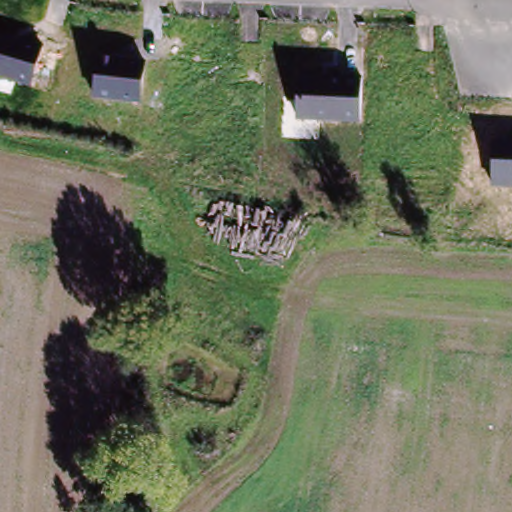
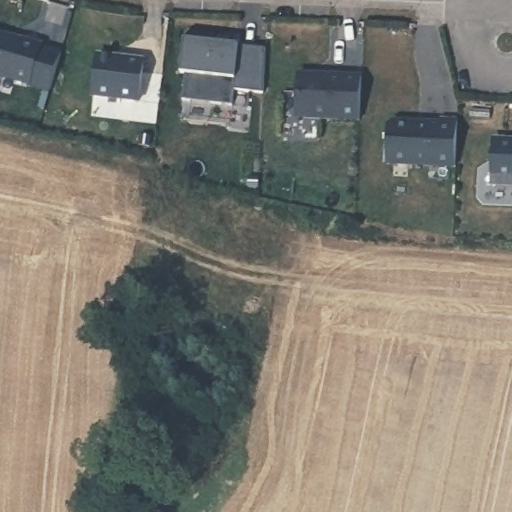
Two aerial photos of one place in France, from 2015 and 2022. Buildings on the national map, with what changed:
unchanged [(41,46),(30,85),(0,76),(0,35),(41,46)]
new [(186,44),(187,44),(188,38),(213,41),(212,50),(223,52),(224,46),(267,52),(266,90),(181,78),(186,44)]
unchanged [(96,54),(146,59),(141,102),(92,96),(96,54)]
unchanged [(301,75),(361,79),(358,120),(298,119),(301,75)]
new [(391,130),(397,125),(443,127),(443,124),(459,125),(457,171),(390,168),(391,130)]
unchanged [(512,140),(512,186),(492,186),(493,140),(512,140)]

